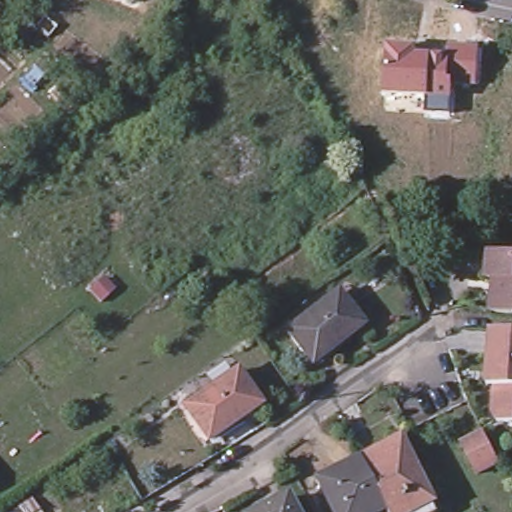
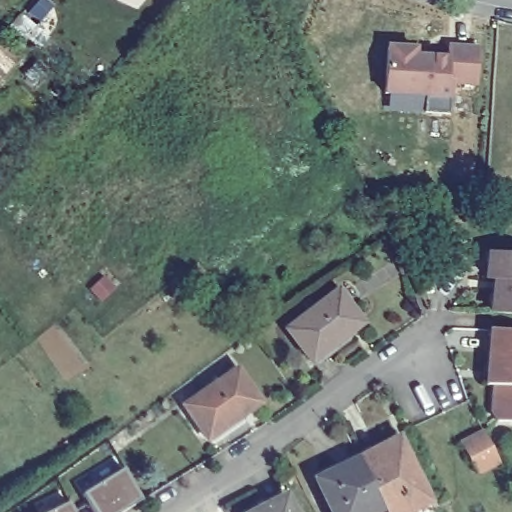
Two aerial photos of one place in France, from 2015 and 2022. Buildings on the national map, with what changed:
unchanged [(144,1),(143,0),(144,0),(144,1)]
unchanged [(419,47),(418,56),(447,56),(447,45),(482,46),(481,91),(453,91),(451,115),(424,113),(424,100),(383,97),(386,45),(419,47)]
unchanged [(503,252),(503,250),(504,241),(512,242),(512,253),(503,252)]
unchanged [(488,283),(490,260),(512,262),(512,318),(493,316),(496,284),(488,283)]
unchanged [(360,327),(309,364),(286,332),(336,296),(360,327)]
unchanged [(499,425),(490,415),(494,377),(487,376),(490,343),(491,335),(512,336),(512,425),(499,425)]
unchanged [(261,409),(210,445),(188,413),(238,377),(261,409)]
unchanged [(504,467),(481,478),(465,446),(488,435),(504,467)]
unchanged [(401,444),(430,508),(432,512),(382,512),(359,464),(401,444)]
unchanged [(359,464),(382,512),(329,512),(316,485),(359,464)]
new [(142,502),(125,512),(94,512),(84,496),(124,470),(142,502)]
unchanged [(264,512),(286,501),(292,512),(264,512)]
new [(74,512),(53,512),(69,504),(74,512)]

